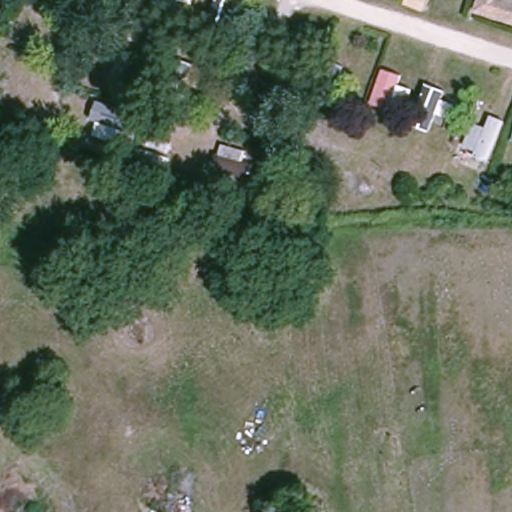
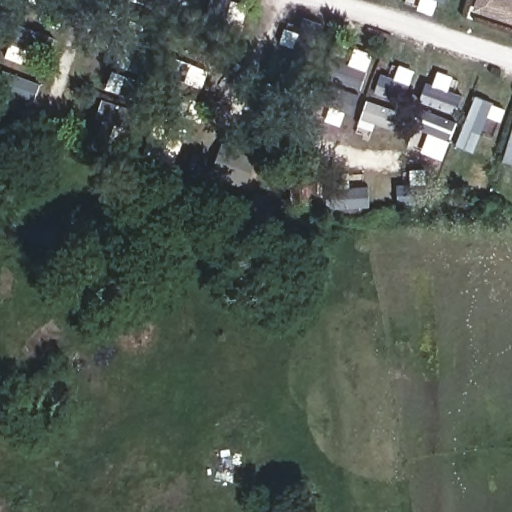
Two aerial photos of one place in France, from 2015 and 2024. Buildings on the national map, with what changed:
unchanged [(512,14),(512,24),(479,14),(483,0),(493,0),(491,8),(512,14)]
unchanged [(503,1),(512,4),(512,14),(491,8),(493,0),(504,0),(503,1)]

